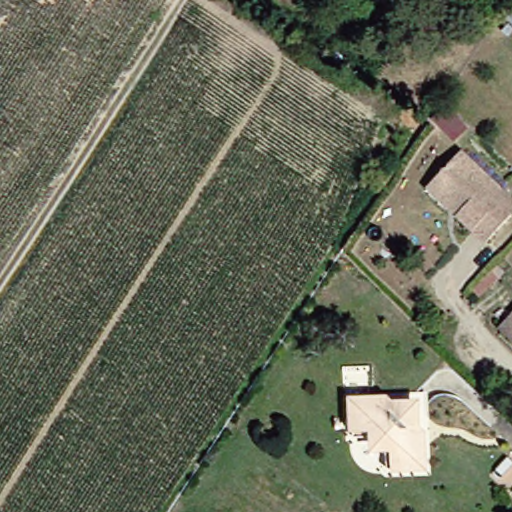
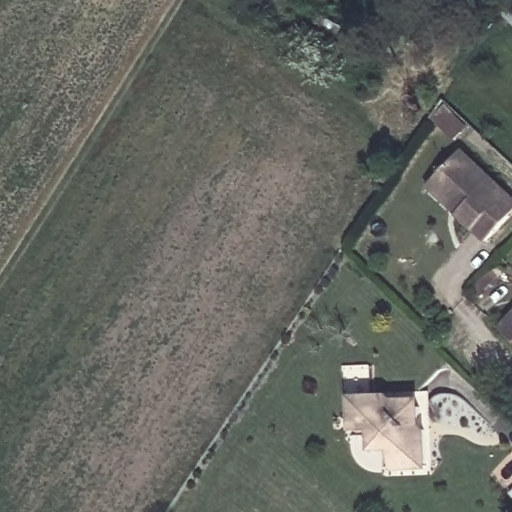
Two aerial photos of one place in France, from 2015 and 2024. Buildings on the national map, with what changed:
unchanged [(512,0),(512,27),(498,14),(512,0)]
unchanged [(471,124),(455,143),(431,122),(445,103),(471,124)]
unchanged [(512,205),(477,241),(447,213),(455,206),(426,178),(453,150),(512,205)]
unchanged [(393,172),(387,182),(380,177),(386,167),(393,172)]
unchanged [(512,307),(512,337),(497,322),(512,307)]
unchanged [(383,396),(387,400),(407,400),(409,403),(413,406),(416,408),(417,427),(421,431),(422,466),(388,467),(388,450),(367,451),(367,430),(350,431),(348,397),(383,396)]

